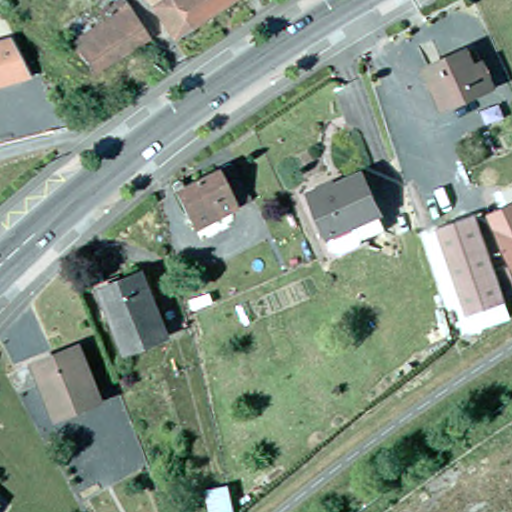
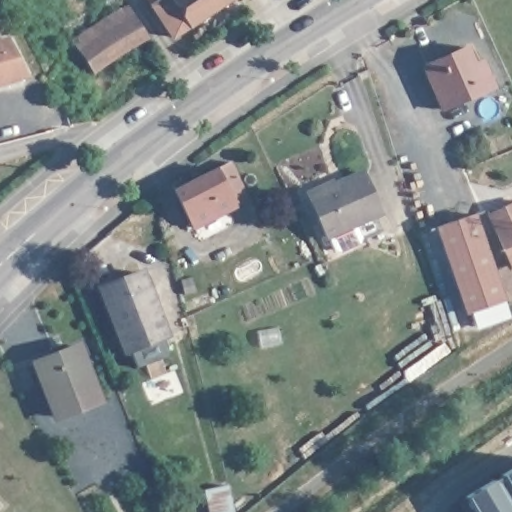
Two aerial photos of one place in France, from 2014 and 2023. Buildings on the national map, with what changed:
unchanged [(116,0),(124,0),(147,36),(92,73),(66,33),(116,0)]
unchanged [(184,31),(162,0),(230,0),(184,31)]
unchanged [(8,34),(27,71),(0,79),(0,36),(8,34)]
unchanged [(436,106),(417,64),(460,45),(468,62),(476,59),(480,67),(486,83),(436,106)]
unchanged [(233,158),(252,197),(240,203),(196,226),(178,188),(175,181),(183,177),(186,183),(220,165),(233,158)]
unchanged [(303,183),(356,159),(373,200),(370,202),(376,217),(329,239),(321,223),(303,183)]
unchanged [(512,269),(510,270),(488,213),(512,205),(512,269)]
unchanged [(430,224),(468,211),(497,297),(460,310),(430,224)]
unchanged [(512,284),(512,291),(502,295),(491,271),(502,265),(512,284)]
unchanged [(100,289),(140,273),(165,337),(125,353),(100,289)]
unchanged [(98,402),(55,418),(35,364),(77,347),(98,402)]
new [(512,471),(512,512),(470,512),(462,497),(512,471)]
unchanged [(212,512),(206,491),(227,488),(232,512),(212,512)]

